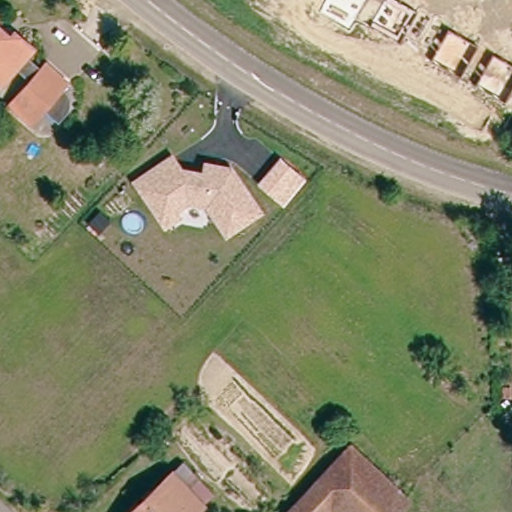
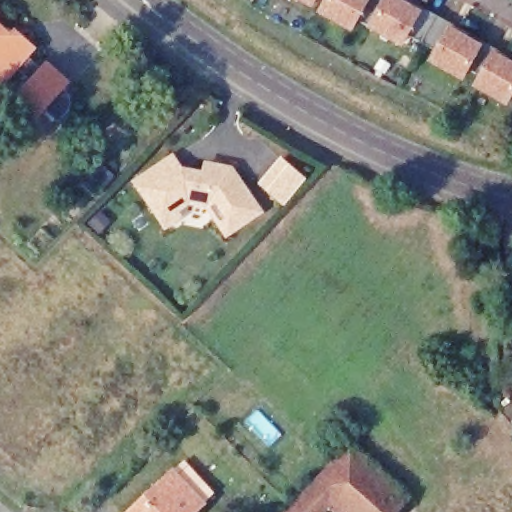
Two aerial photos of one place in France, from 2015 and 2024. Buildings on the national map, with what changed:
unchanged [(304,3),(298,0),(306,0),(304,3)]
new [(422,13),(423,9),(449,24),(448,27),(481,45),(483,42),(493,47),(493,51),(512,62),(512,100),(507,108),(473,89),(482,72),(472,66),(463,84),(428,63),(438,45),(412,30),(401,48),(367,30),(371,23),(361,16),(350,35),(317,16),(325,0),(400,0),(422,13)]
unchanged [(22,94),(31,84),(15,70),(0,88),(0,36),(6,41),(11,37),(30,53),(24,59),(39,73),(44,69),(64,85),(59,90),(69,100),(70,104),(69,115),(59,126),(42,111),(30,124),(11,107),(22,94)]
unchanged [(130,180),(174,152),(183,168),(200,172),(204,162),(233,167),(264,214),(226,239),(205,207),(188,205),(179,212),(183,219),(164,231),(130,180)]
unchanged [(307,180),(283,207),(256,184),(279,158),(307,180)]
unchanged [(330,512),(293,512),(298,507),(355,446),(411,499),(399,512),(339,512),(334,507),(330,512)]
unchanged [(217,493),(198,512),(136,512),(187,462),(217,493)]

